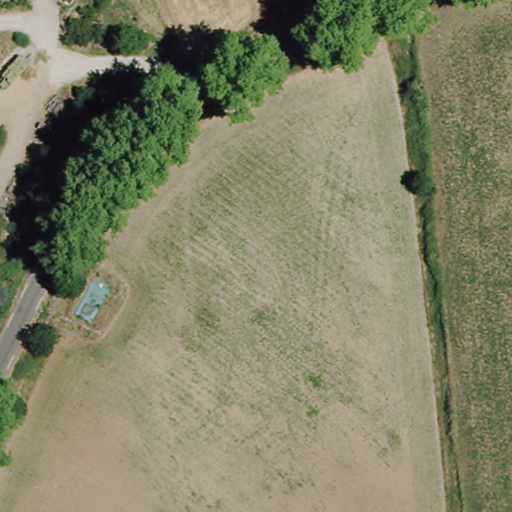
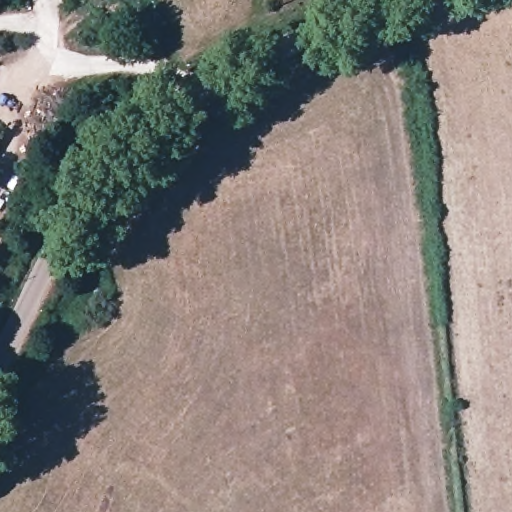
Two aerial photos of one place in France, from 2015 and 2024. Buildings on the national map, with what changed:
unchanged [(285,8),(289,22),(277,28),(271,13),(285,8)]
unchanged [(6,138),(0,146),(0,135),(6,138)]

